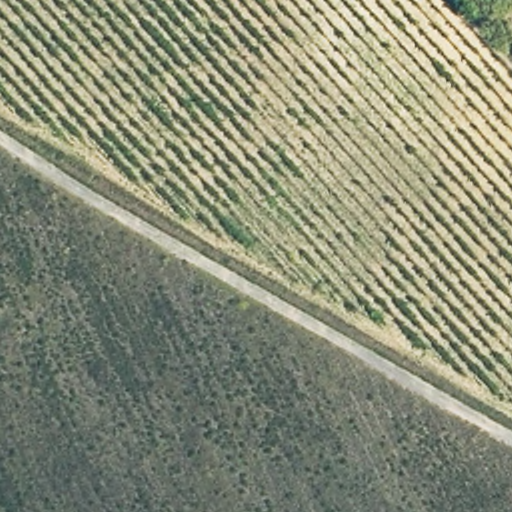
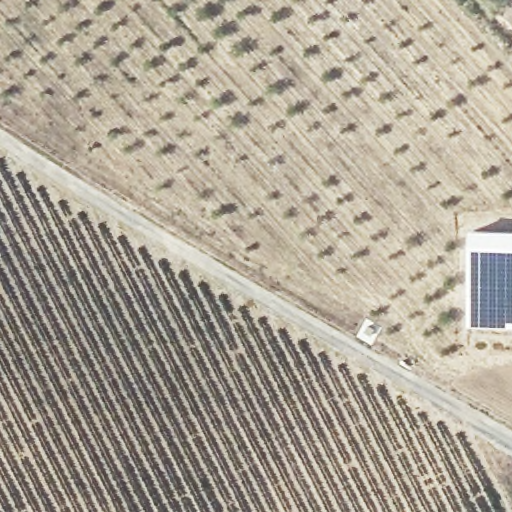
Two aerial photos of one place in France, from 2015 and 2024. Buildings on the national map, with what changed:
new [(470,228),(512,230),(512,328),(467,327),(470,228)]

